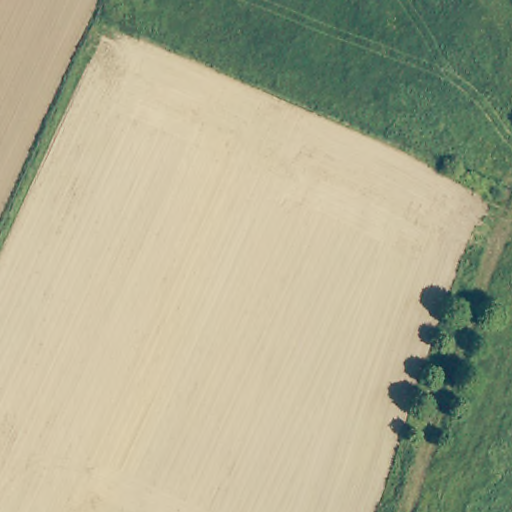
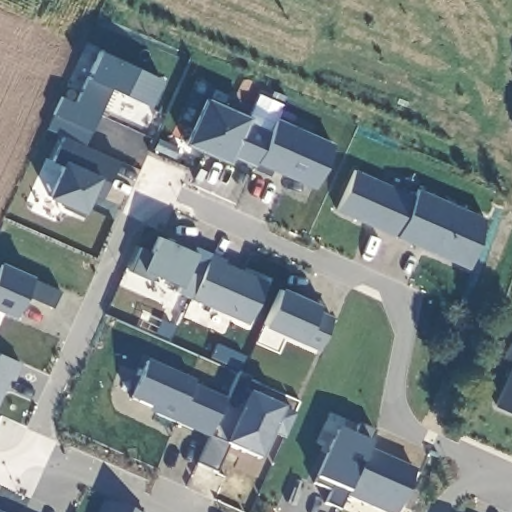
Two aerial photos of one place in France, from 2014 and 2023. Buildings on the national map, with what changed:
new [(149,107),(108,89),(91,126),(54,113),(64,94),(76,100),(99,51),(159,79),(149,107)]
new [(253,172),(229,160),(226,169),(183,149),(203,104),(246,123),(244,128),(268,138),(253,172)]
new [(279,113),(293,119),(293,120),(323,134),(319,142),(332,148),(314,190),(273,172),(269,179),(253,172),(279,113)]
new [(101,199),(92,194),(84,213),(46,197),(59,164),(51,160),(62,135),(116,160),(101,199)]
new [(335,213),(354,173),(413,199),(395,239),(335,213)]
new [(416,191),(483,220),(467,271),(395,239),(416,191)]
new [(190,301),(176,294),(179,289),(154,278),(151,284),(130,274),(140,251),(151,255),(159,240),(194,255),(197,249),(210,255),(190,301)]
new [(210,255),(225,263),(224,265),(266,284),(247,327),(190,301),(210,255)]
new [(53,310),(23,297),(13,318),(0,312),(0,265),(60,293),(53,310)]
new [(319,350),(300,341),(263,327),(279,286),(319,304),(317,309),(332,316),(319,350)]
new [(9,379),(0,399),(0,353),(21,362),(13,381),(9,379)]
new [(494,406),(512,363),(512,413),(494,406)]
new [(154,416),(156,412),(129,400),(145,364),(192,385),(190,389),(224,404),(208,439),(154,416)]
new [(228,449),(215,476),(195,467),(235,377),(247,381),(241,395),(294,418),(283,442),(269,436),(258,462),(228,449)]
new [(369,444),(367,449),(349,492),(347,496),(339,511),(324,503),(329,491),(313,483),(315,478),(336,428),(352,434),(357,422),(375,430),(369,444)]
new [(347,496),(367,449),(416,471),(397,512),(386,512),(347,496)]
new [(105,501),(131,512),(101,512),(105,501)]

